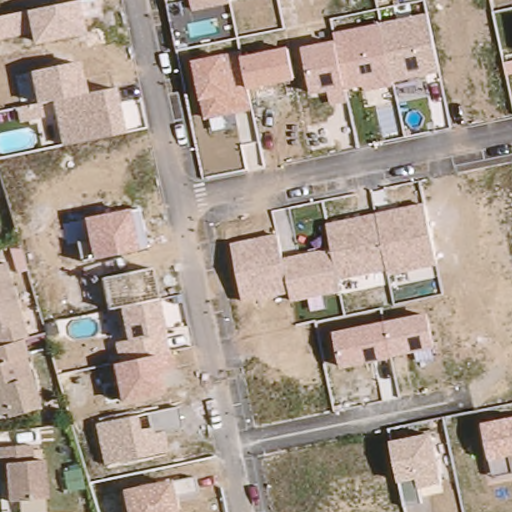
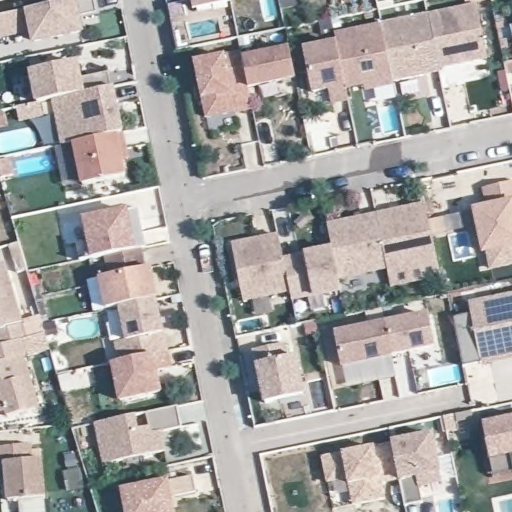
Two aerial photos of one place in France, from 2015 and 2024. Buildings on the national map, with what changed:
new [(3,0),(0,1),(0,0),(3,0)]
unchanged [(25,12),(77,1),(84,0),(98,0),(102,15),(81,20),(85,33),(33,45),(30,32),(0,39),(0,17),(25,12)]
new [(43,7),(42,0),(84,0),(77,1),(43,7)]
unchanged [(193,10),(192,0),(231,0),(232,4),(193,10)]
new [(477,5),(487,59),(438,69),(427,16),(477,5)]
unchanged [(303,50),(336,44),(334,34),(427,16),(438,72),(393,81),(394,86),(365,92),(363,86),(345,89),(348,103),(332,106),(329,92),(311,93),(303,50)]
unchanged [(193,62),(225,56),(242,52),(243,57),(289,47),(296,79),(249,89),(252,111),(234,114),(206,120),(201,100),(193,62)]
unchanged [(53,101),(43,102),(45,116),(20,121),(17,108),(35,104),(27,72),(77,62),(84,93),(113,87),(122,134),(62,144),(53,101)]
new [(128,160),(123,161),(127,177),(82,186),(72,142),(122,134),(128,160)]
new [(485,206),(481,189),(512,182),(512,264),(488,268),(485,253),(481,254),(472,209),(485,206)]
unchanged [(232,244),(279,235),(284,258),(331,249),(326,225),(424,205),(436,267),(388,277),(386,270),(337,279),(341,293),(292,302),(290,292),(243,302),(232,244)]
unchanged [(83,219),(128,210),(140,207),(148,247),(137,249),(91,258),(83,219)]
unchanged [(25,340),(3,347),(0,336),(0,265),(8,262),(30,338),(27,340),(25,340)]
unchanged [(111,364),(117,363),(113,343),(124,340),(119,309),(107,311),(102,278),(152,268),(164,333),(168,353),(172,368),(157,373),(161,394),(118,402),(111,364)]
new [(498,296),(512,293),(512,352),(510,352),(499,300),(498,296)]
new [(499,300),(510,352),(462,362),(451,310),(499,300)]
unchanged [(334,332),(430,313),(437,347),(341,369),(334,332)]
unchanged [(31,412),(10,418),(10,414),(0,416),(0,347),(3,347),(25,340),(31,357),(30,358),(39,392),(43,408),(31,412)]
unchanged [(283,342),(286,357),(295,355),(304,395),(266,402),(258,363),(257,363),(254,348),(283,342)]
unchanged [(95,423),(177,409),(180,428),(163,432),(167,452),(103,464),(95,423)]
unchanged [(512,419),(512,473),(493,477),(490,460),(483,423),(512,419)]
unchanged [(390,442),(433,435),(440,475),(442,483),(419,488),(423,503),(404,507),(398,482),(390,442)]
new [(390,442),(397,481),(382,483),(384,500),(352,506),(347,485),(346,479),(327,485),(321,457),(342,453),(374,447),(390,442)]
unchanged [(12,482),(4,482),(2,463),(2,447),(37,445),(39,460),(47,460),(50,499),(13,502),(12,482)]
unchanged [(120,490),(169,481),(193,477),(196,492),(172,496),(176,512),(125,512),(120,490)]

